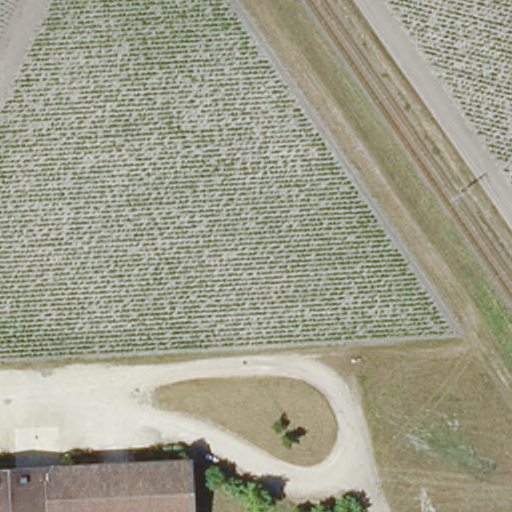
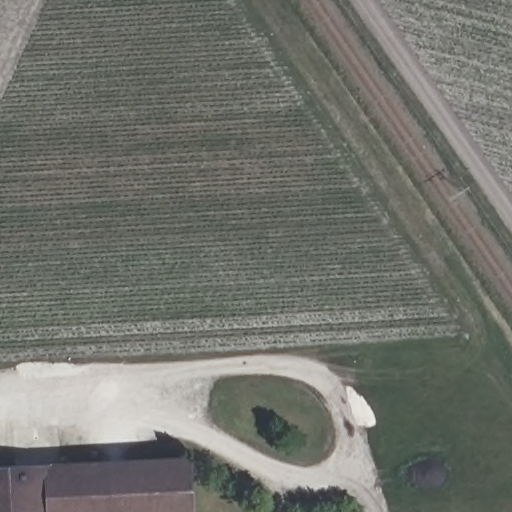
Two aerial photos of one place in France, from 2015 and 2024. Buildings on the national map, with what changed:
unchanged [(191,463),(193,512),(0,512),(0,470),(191,463)]

